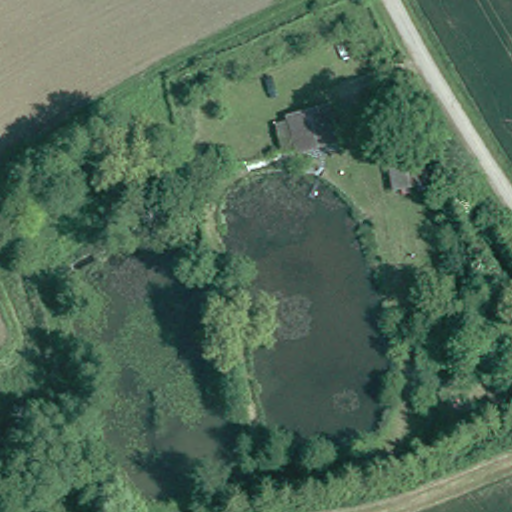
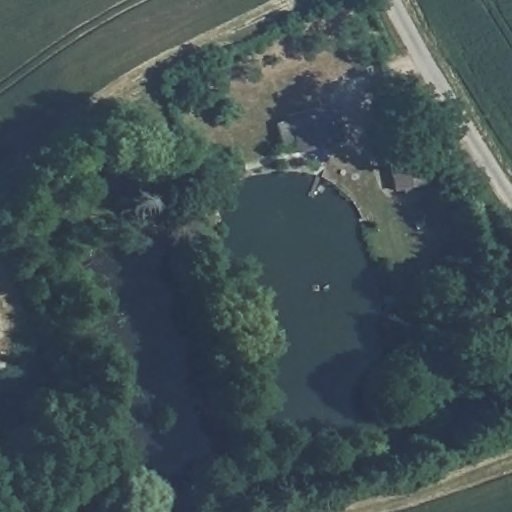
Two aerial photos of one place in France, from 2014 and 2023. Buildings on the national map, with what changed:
unchanged [(288,117),(327,107),(335,139),(296,149),(288,117)]
unchanged [(388,161),(403,158),(409,189),(393,192),(388,161)]

